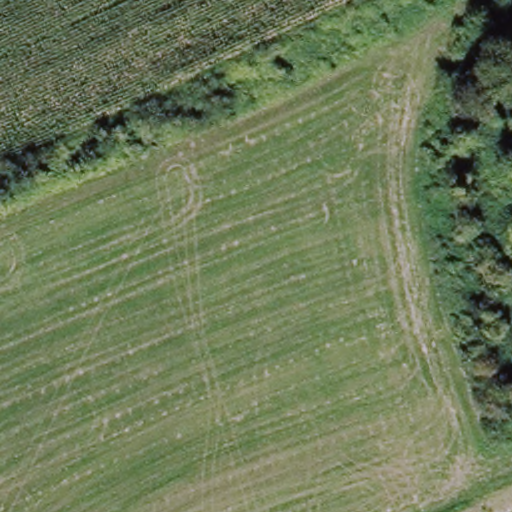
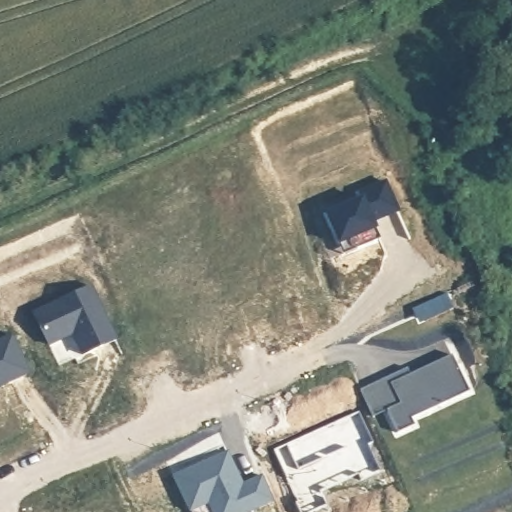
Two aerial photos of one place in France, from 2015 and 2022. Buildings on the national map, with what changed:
new [(362,200),(359,193),(386,181),(399,210),(372,223),(381,240),(359,250),(354,239),(340,245),(326,215),(362,200)]
new [(91,285),(116,339),(82,355),(72,333),(49,344),(34,311),(91,285)]
new [(30,372),(0,386),(0,340),(12,334),(30,372)]
new [(401,405),(391,385),(453,356),(470,394),(412,421),(415,427),(398,435),(387,412),(401,405)]
new [(411,376),(391,385),(401,405),(374,417),(362,390),(408,369),(411,376)]
new [(244,484),(263,475),(274,497),(243,512),(214,512),(209,500),(190,508),(175,475),(228,451),(244,484)]

